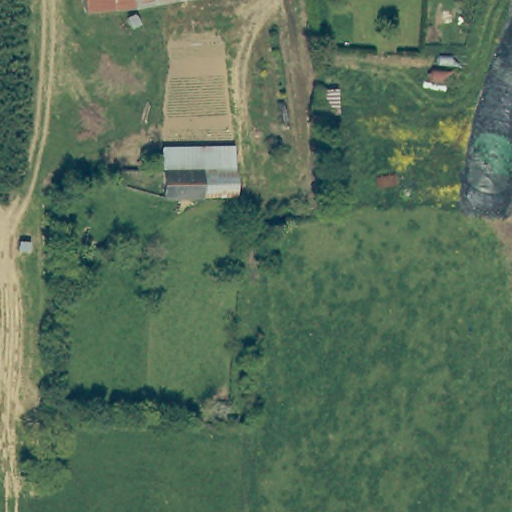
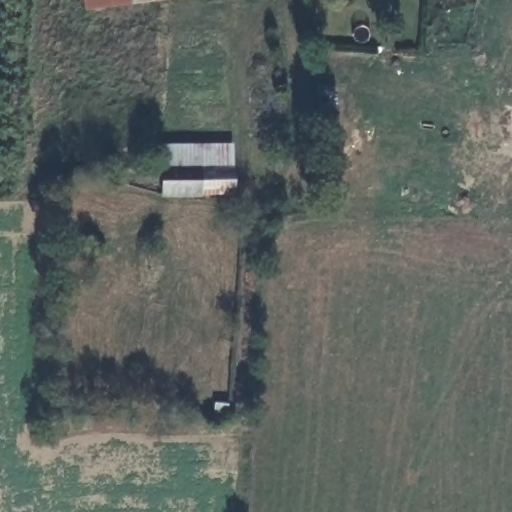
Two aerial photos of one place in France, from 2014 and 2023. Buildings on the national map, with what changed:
unchanged [(85,9),(84,0),(146,0),(85,9)]
unchanged [(342,52),(343,87),(315,90),(312,53),(342,52)]
unchanged [(160,184),(160,157),(198,156),(199,184),(160,184)]
unchanged [(198,156),(235,156),(235,184),(199,184),(198,156)]

